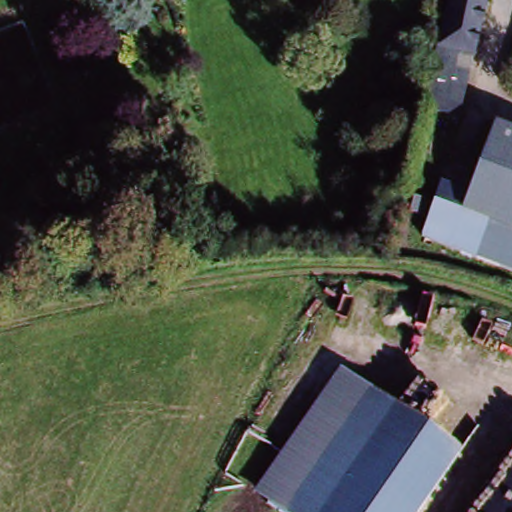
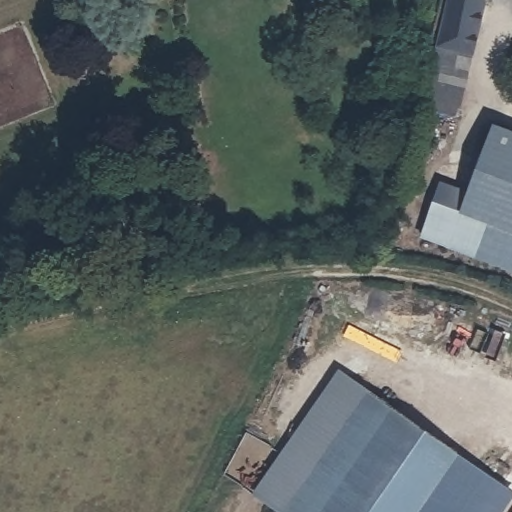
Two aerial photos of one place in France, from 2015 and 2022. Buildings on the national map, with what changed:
unchanged [(453,1),(485,9),(475,52),(442,45),(453,1)]
unchanged [(475,52),(460,116),(427,109),(442,45),(475,52)]
unchanged [(512,135),(512,236),(460,214),(497,129),(512,135)]
unchanged [(512,278),(417,237),(432,202),(460,214),(512,236),(512,278)]
unchanged [(416,512),(287,512),(250,487),(348,361),(403,400),(465,448),(416,512)]
new [(512,487),(512,498),(502,512),(416,512),(462,452),(512,487)]

